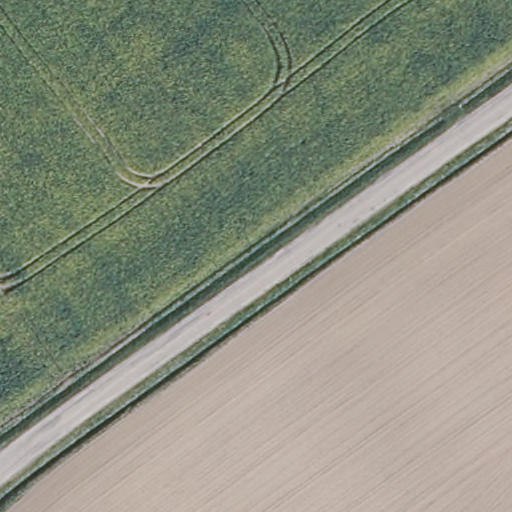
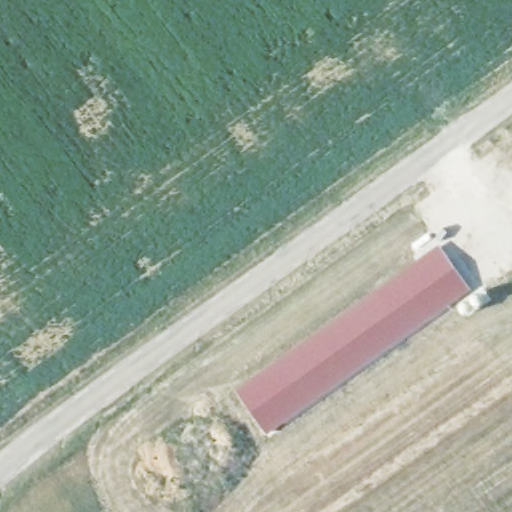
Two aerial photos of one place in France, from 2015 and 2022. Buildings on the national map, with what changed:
new [(460,292),(270,426),(240,388),(435,252),(460,292)]

